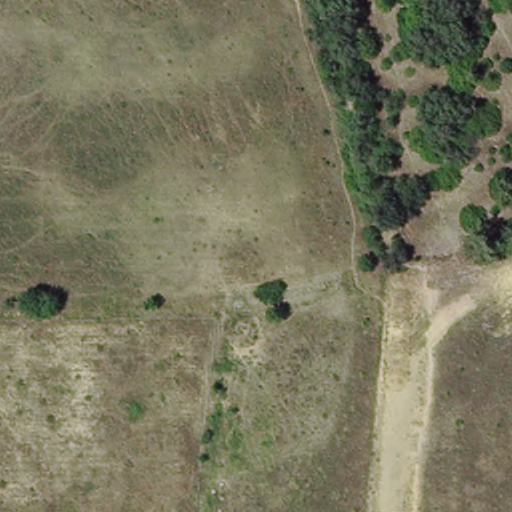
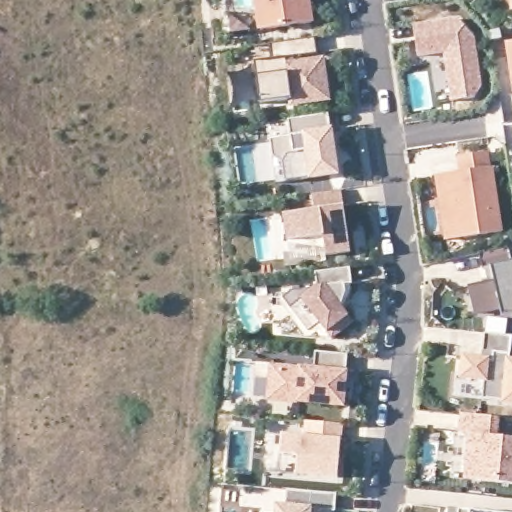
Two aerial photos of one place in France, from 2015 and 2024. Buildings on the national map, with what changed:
new [(316,22),(260,30),(254,0),(313,0),(316,22)]
new [(457,19),(474,37),(482,86),(476,98),(452,102),(445,54),(419,58),(414,25),(457,19)]
new [(272,57),(270,41),(315,34),(318,50),(295,53),(296,60),(323,56),(329,95),(292,101),(291,96),(261,101),(255,59),(272,57)]
new [(512,41),(512,82),(506,42),(512,41)]
new [(288,116),(326,111),(329,110),(331,127),(338,170),(277,179),(270,136),(291,133),(288,116)]
new [(462,167),(460,152),(487,147),(490,163),(492,162),(502,228),(465,233),(462,216),(445,219),(438,171),(462,167)]
new [(288,237),(284,211),(315,206),(313,190),(342,186),(351,247),(327,251),(326,243),(289,240),(288,237)]
new [(504,317),(502,310),(475,317),(469,288),(489,284),(485,268),(482,268),(480,254),(509,246),(512,262),(512,315),(504,317)]
new [(318,283),(316,268),(351,263),(353,279),(351,279),(353,289),(347,308),(355,318),(334,334),(322,319),(310,328),(284,294),(293,287),(318,283)]
new [(510,359),(512,359),(512,405),(502,404),(502,402),(483,400),(485,381),(460,379),(463,355),(482,357),(484,333),(512,336),(510,359)]
new [(347,355),(345,406),(266,400),(270,364),(314,368),(316,352),(347,355)]
new [(462,407),(500,410),(498,429),(512,430),(512,477),(465,472),(470,427),(460,426),(462,407)]
new [(344,425),(343,439),(340,439),(337,479),(280,472),(282,434),(304,436),(306,421),(344,425)]

